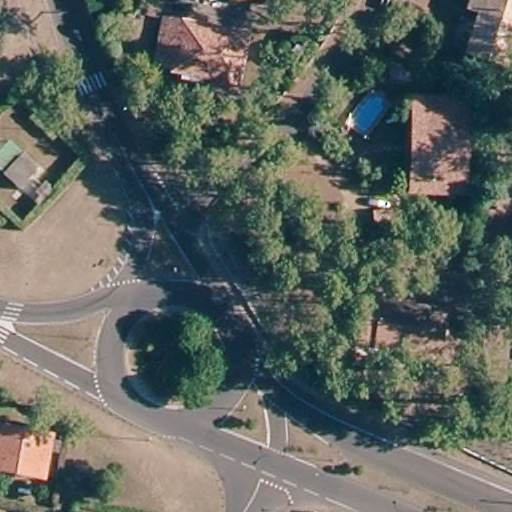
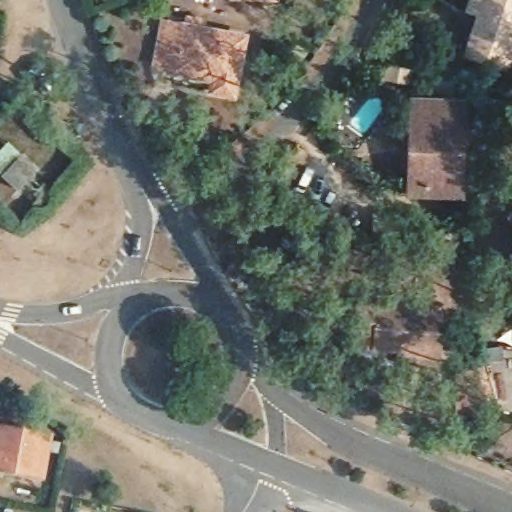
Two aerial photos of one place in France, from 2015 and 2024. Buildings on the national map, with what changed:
unchanged [(512,46),(503,75),(460,61),(472,22),(459,16),(464,0),(502,0),(503,1),(503,0),(512,0),(512,46)]
unchanged [(231,95),(211,91),(214,81),(155,67),(164,22),(241,39),(231,95)]
unchanged [(406,69),(411,70),(408,84),(386,80),(389,66),(406,69)]
unchanged [(412,126),(412,101),(465,103),(461,196),(416,194),(410,194),(412,126)]
unchanged [(37,169),(16,191),(1,176),(21,154),(37,169)]
unchanged [(55,194),(40,211),(31,204),(36,199),(32,195),(44,183),(55,194)]
unchanged [(373,217),(398,215),(400,231),(375,232),(373,217)]
unchanged [(422,357),(377,353),(377,357),(355,355),(356,343),(360,296),(384,297),(412,301),(412,309),(426,311),(426,316),(443,317),(440,353),(440,362),(422,361),(422,357)]
unchanged [(32,436),(49,439),(41,479),(0,471),(0,430),(32,436)]

